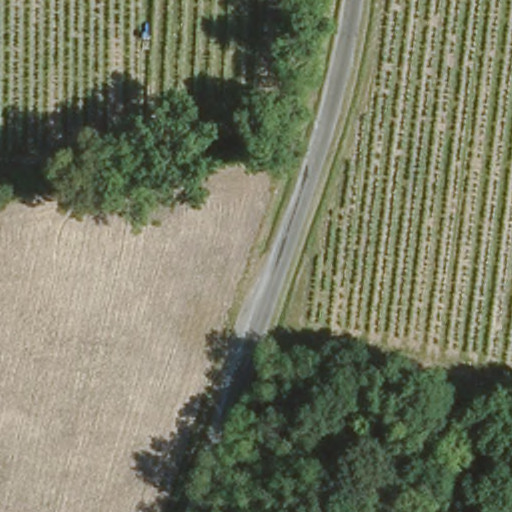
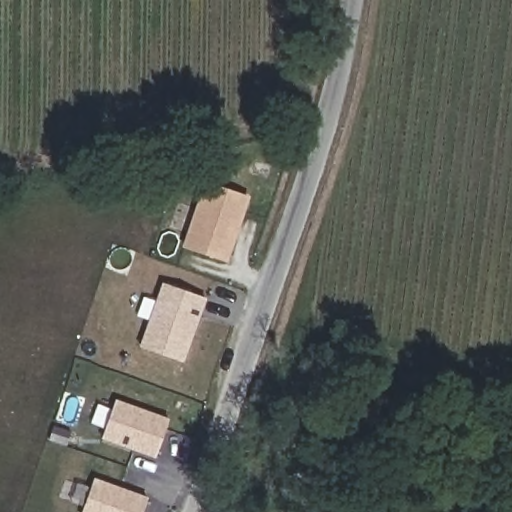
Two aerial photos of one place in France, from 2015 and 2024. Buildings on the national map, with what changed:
new [(205,182),(249,197),(227,261),(182,246),(205,182)]
new [(207,296),(184,360),(143,346),(167,281),(207,296)]
new [(170,421),(157,457),(102,437),(115,402),(170,421)]
new [(149,499),(144,512),(82,512),(94,480),(149,499)]

